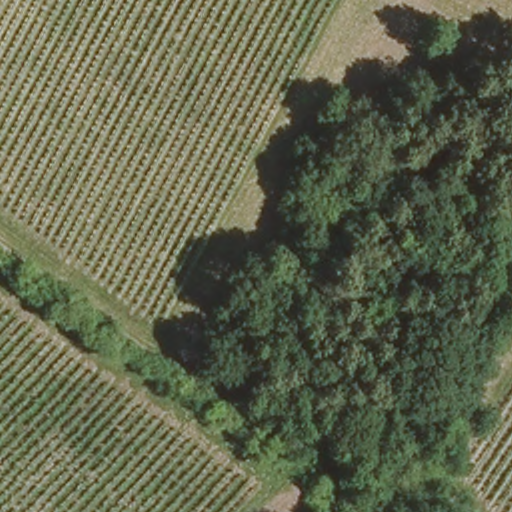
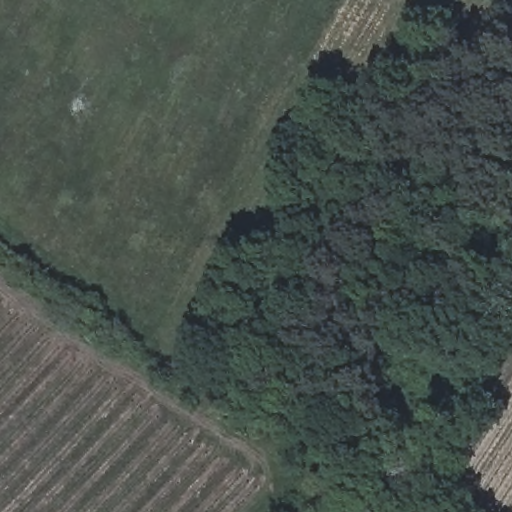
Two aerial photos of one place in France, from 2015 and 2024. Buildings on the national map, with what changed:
[]

